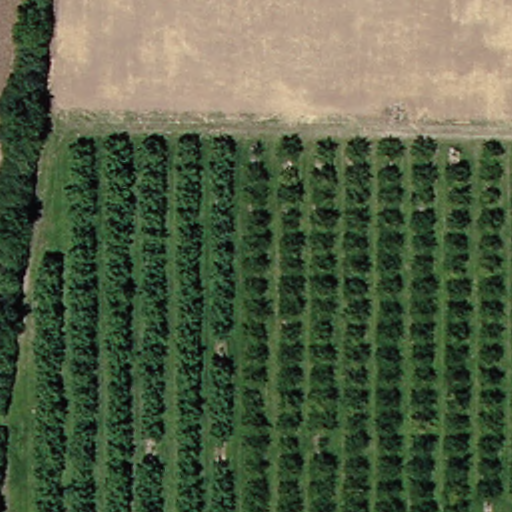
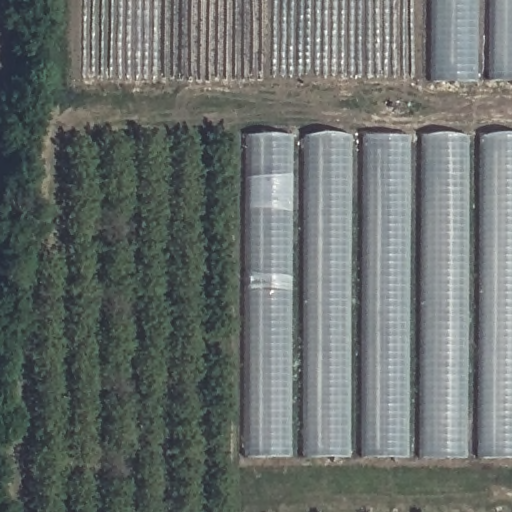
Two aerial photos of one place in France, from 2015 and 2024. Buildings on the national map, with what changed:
new [(71,0),(415,0),(415,82),(71,90),(71,0)]
new [(435,80),(435,0),(479,0),(478,80),(435,80)]
new [(494,80),(494,0),(512,0),(512,80),(494,80)]
new [(242,463),(245,134),(512,137),(512,459),(242,463)]

